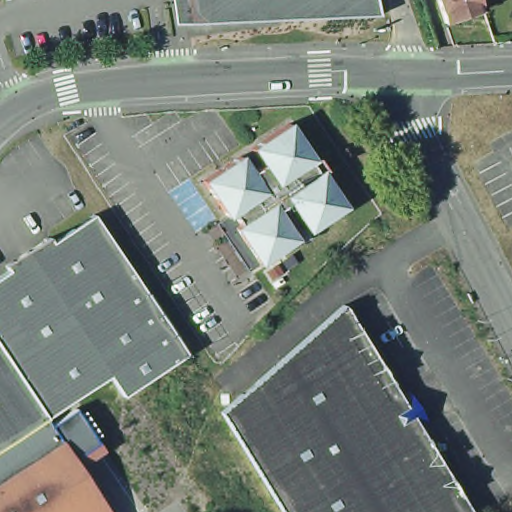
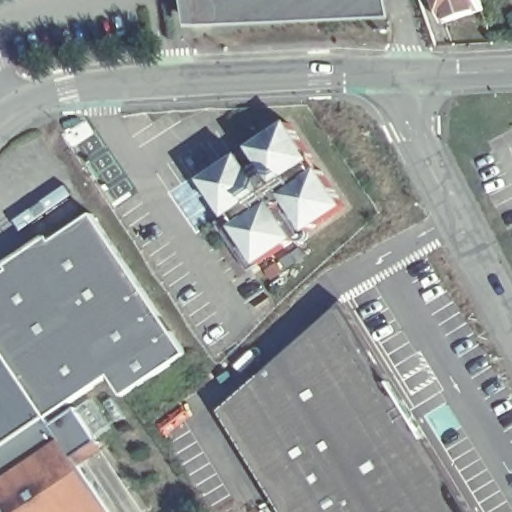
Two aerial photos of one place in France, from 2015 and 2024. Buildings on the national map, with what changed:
unchanged [(375,12),(185,20),(183,5),(182,0),(372,0),(375,12)]
unchanged [(431,0),(472,0),(479,20),(442,32),(431,0)]
unchanged [(240,161),(251,176),(262,169),(252,153),(289,127),(313,163),(309,166),(317,178),(321,175),(345,211),(309,235),(297,220),(285,228),(297,244),(260,268),(235,231),(239,229),(232,219),(228,221),(204,186),(240,161)]
unchanged [(87,222),(185,360),(122,403),(108,381),(47,421),(105,512),(0,512),(0,282),(87,222)]
unchanged [(349,319),(455,492),(421,512),(280,512),(214,402),(349,319)]
unchanged [(421,512),(455,492),(467,512),(421,512)]

